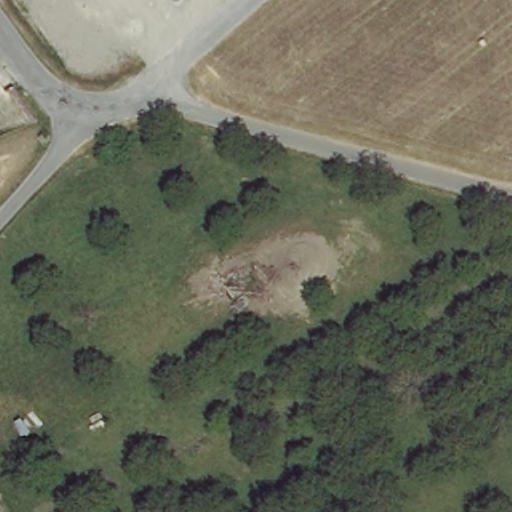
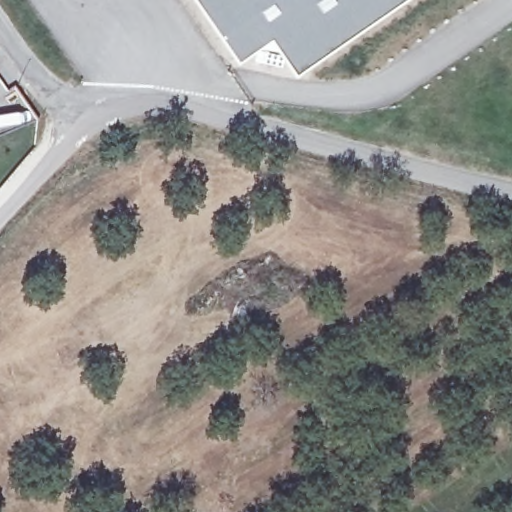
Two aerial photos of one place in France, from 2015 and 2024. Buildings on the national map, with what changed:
new [(296,69),(272,33),(237,57),(199,0),(396,0),(296,69)]

